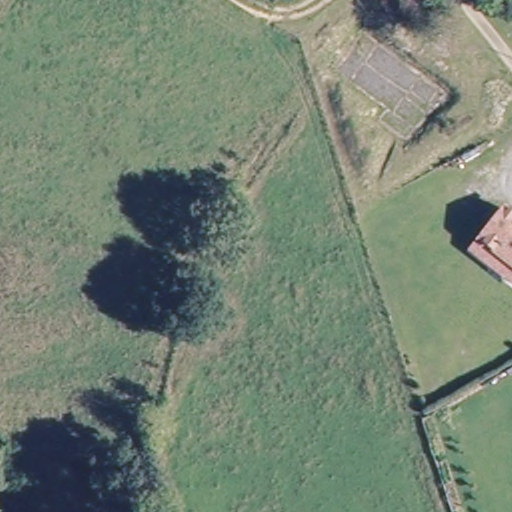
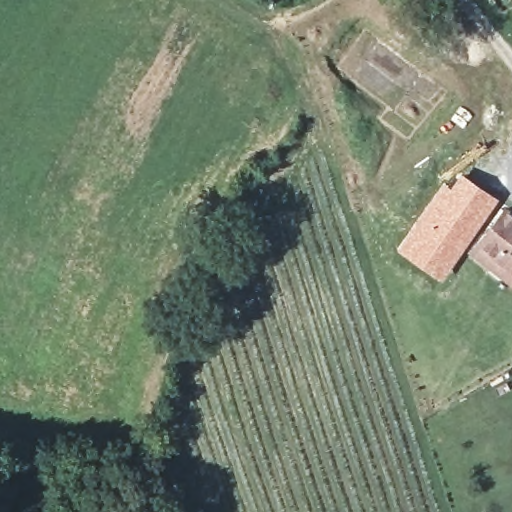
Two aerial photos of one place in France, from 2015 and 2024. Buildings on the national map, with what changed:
new [(444,182),(449,186),(460,171),(499,198),(441,278),(397,247),(444,182)]
unchanged [(470,242),(496,211),(512,223),(512,283),(507,288),(462,252),(470,242)]

